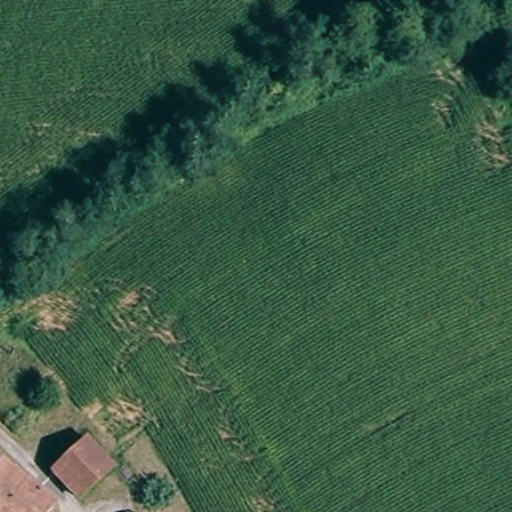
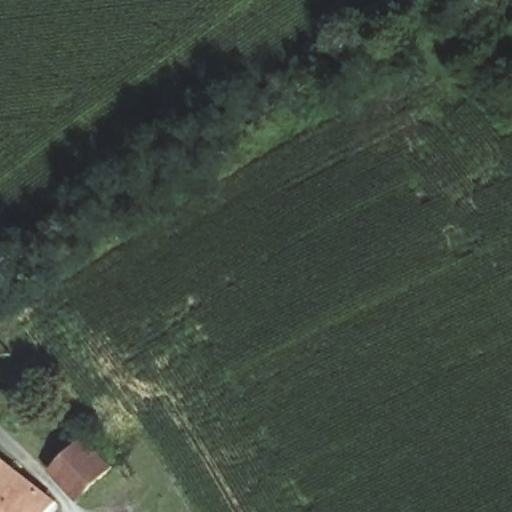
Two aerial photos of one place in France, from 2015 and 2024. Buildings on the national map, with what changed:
unchanged [(90,435),(118,464),(82,496),(70,484),(55,469),(90,435)]
unchanged [(44,512),(0,512),(0,458),(1,457),(53,500),(44,512)]

